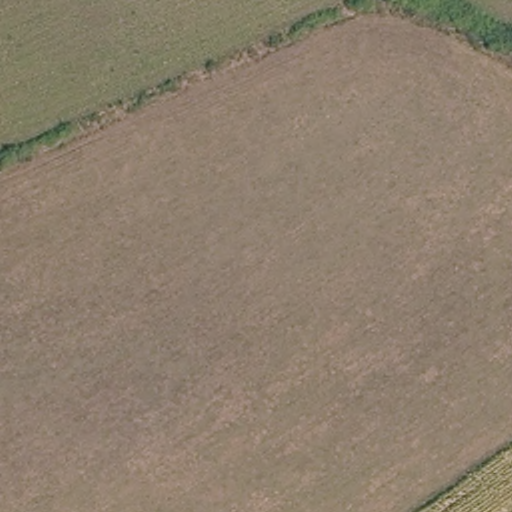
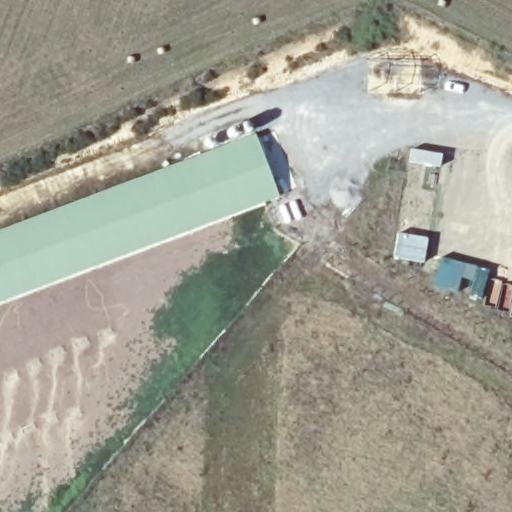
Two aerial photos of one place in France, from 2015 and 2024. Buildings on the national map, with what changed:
new [(0,303),(0,231),(255,134),(278,198),(0,303)]

